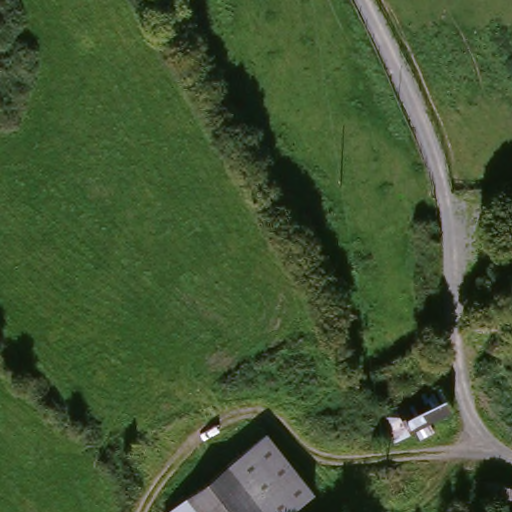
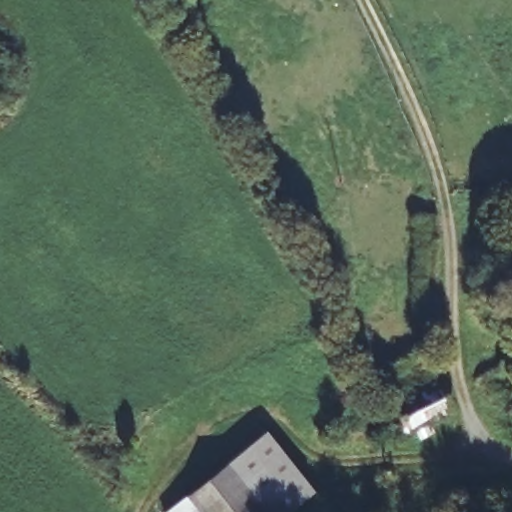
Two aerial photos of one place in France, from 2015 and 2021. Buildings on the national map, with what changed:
unchanged [(406,440),(401,441),(388,414),(401,406),(448,383),(453,389),(463,411),(406,440)]
unchanged [(168,512),(266,437),(313,499),(297,512),(168,512)]

